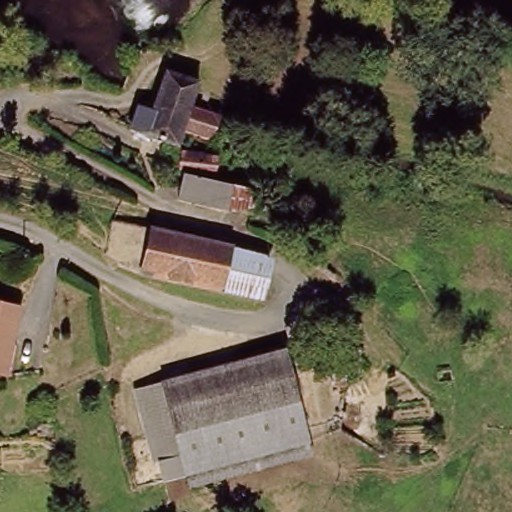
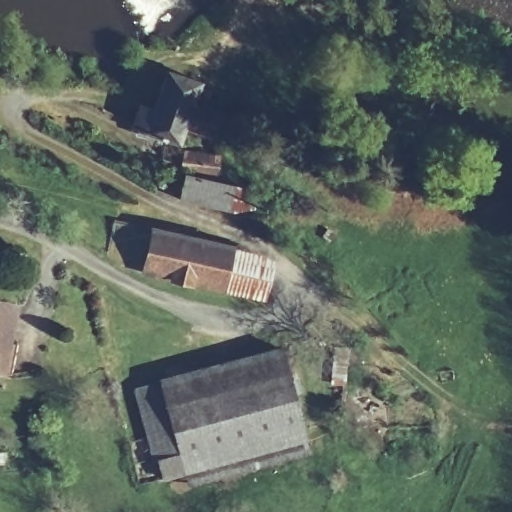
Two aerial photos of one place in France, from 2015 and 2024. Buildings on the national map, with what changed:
unchanged [(191,104),(220,113),(215,129),(186,120),(180,138),(148,127),(166,71),(199,80),(195,89),(191,104)]
unchanged [(182,165),(182,147),(205,146),(205,149),(212,150),(212,159),(205,160),(205,165),(182,165)]
unchanged [(254,202),(192,200),(185,197),(187,175),(255,180),(254,202)]
unchanged [(135,270),(135,261),(111,256),(119,220),(169,229),(225,240),(219,284),(135,270)]
unchanged [(219,284),(225,240),(264,255),(258,290),(219,284)]
unchanged [(16,338),(11,368),(0,367),(0,301),(17,305),(11,337),(16,338)]
unchanged [(183,472),(160,479),(132,387),(278,344),(306,435),(183,472)]
unchanged [(311,450),(187,486),(183,472),(306,435),(311,450)]

